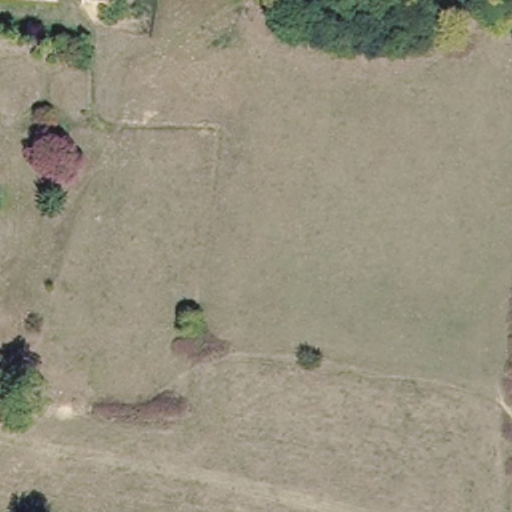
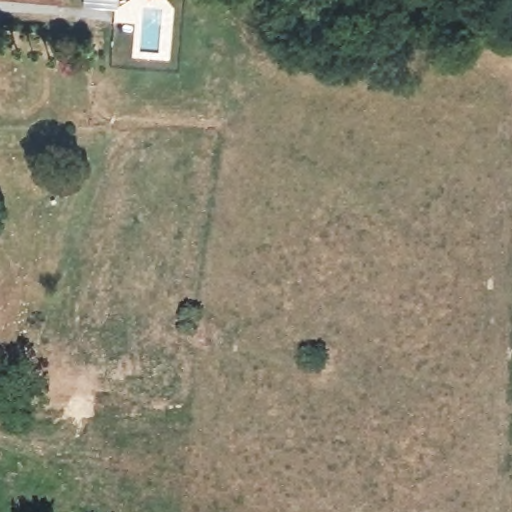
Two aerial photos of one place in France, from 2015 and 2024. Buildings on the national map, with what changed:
unchanged [(117,13),(96,13),(85,12),(86,0),(119,0),(117,13)]

